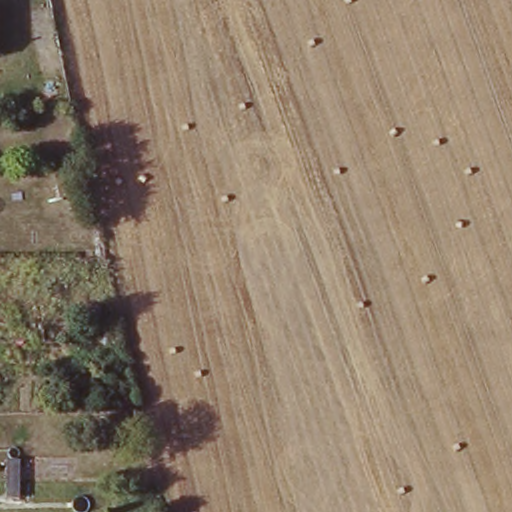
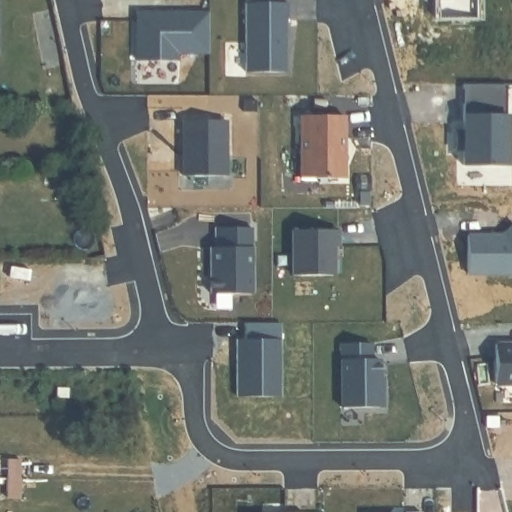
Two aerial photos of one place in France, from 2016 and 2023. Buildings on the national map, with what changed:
new [(252,1),(295,1),(295,18),(292,18),(292,71),(251,71),(252,1)]
new [(212,12),(212,48),(196,47),(196,50),(180,51),(180,59),(140,58),(141,11),(212,12)]
new [(508,166),(465,166),(465,149),(455,148),(455,133),(465,133),(466,84),(509,85),(508,166)]
new [(347,115),(347,176),(304,176),(303,115),(347,115)]
new [(229,119),(229,173),(185,174),(186,118),(229,119)]
new [(256,226),(255,292),(215,292),(215,246),(220,246),(220,226),(256,226)]
new [(342,246),(337,246),(337,275),(296,274),(297,229),(342,229),(342,246)]
new [(512,236),(512,274),(468,274),(470,235),(512,236)]
new [(239,395),(240,337),(248,338),(248,321),(283,321),(283,395),(239,395)]
new [(344,343),(374,343),(374,358),(382,359),(382,387),(385,391),(385,403),(383,406),(344,406),(344,343)]
new [(512,345),(512,384),(498,384),(498,345),(512,345)]
new [(276,511),(305,511),(305,512),(264,512),(264,511),(276,511)]

